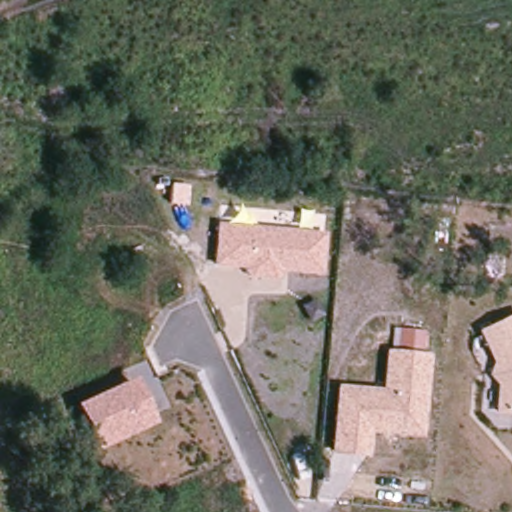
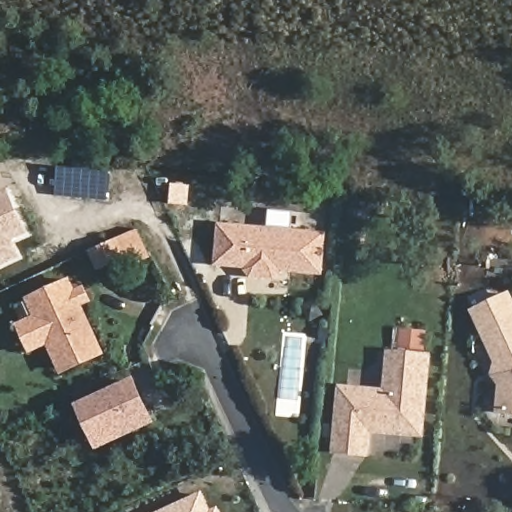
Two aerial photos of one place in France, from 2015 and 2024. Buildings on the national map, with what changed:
new [(55,195),(58,167),(110,173),(106,200),(55,195)]
new [(0,268),(0,194),(9,190),(29,235),(13,242),(21,258),(0,268)]
unchanged [(219,267),(221,226),(327,234),(324,275),(282,271),(281,280),(247,277),(247,268),(219,267)]
new [(97,273),(88,251),(119,238),(128,258),(97,273)]
new [(84,307),(105,355),(60,376),(46,346),(28,355),(15,325),(33,317),(25,298),(71,279),(75,291),(85,286),(92,304),(84,307)]
unchanged [(498,386),(488,375),(495,365),(481,331),(512,318),(512,417),(498,415),(498,386)]
unchanged [(387,351),(434,356),(426,437),(372,435),(370,457),(333,455),(340,386),(385,390),(387,351)]
unchanged [(95,453),(71,406),(135,378),(155,425),(95,453)]
new [(211,510),(216,506),(220,512),(157,512),(203,490),(211,510)]

